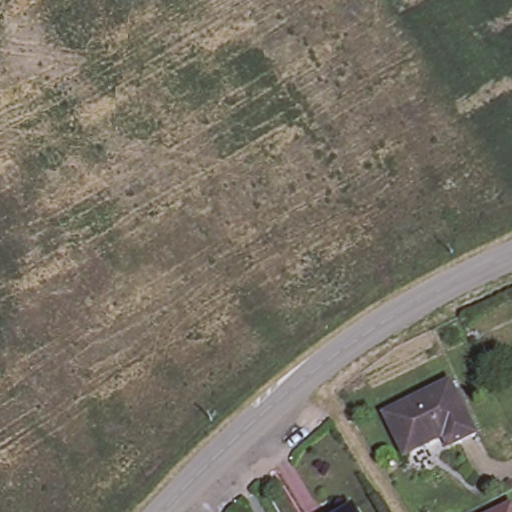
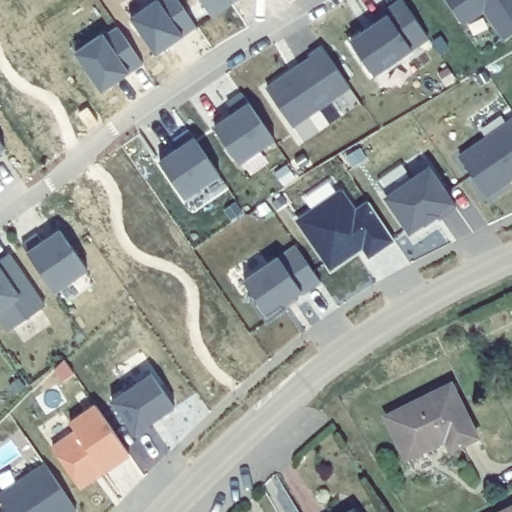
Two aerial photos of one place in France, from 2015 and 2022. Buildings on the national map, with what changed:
new [(158,0),(177,0),(196,28),(155,56),(130,19),(158,0)]
new [(216,18),(204,0),(243,0),(236,5),(216,18)]
new [(380,26),(377,21),(406,0),(433,38),(378,76),(355,42),(380,26)]
new [(512,38),(508,40),(488,11),(467,25),(450,0),(512,0),(512,38)]
new [(103,35),(105,37),(117,30),(142,65),(101,94),(73,55),(103,35)]
new [(315,59),(314,57),(327,47),(354,87),(296,127),(271,90),(315,59)]
new [(211,128),(248,101),(275,141),(239,165),(211,128)]
new [(512,118),(512,180),(485,198),(456,156),(512,118)]
new [(157,162),(195,136),(220,177),(183,200),(157,162)]
new [(5,152),(0,154),(0,145),(5,152)]
new [(434,169),(460,207),(443,219),(441,217),(430,224),(429,222),(415,233),(391,199),(434,169)]
new [(293,220),(341,187),(356,210),(369,201),(393,241),(369,258),(363,249),(330,270),(293,220)]
new [(27,253),(61,230),(86,271),(54,292),(27,253)]
new [(290,310),(271,322),(258,305),(262,303),(247,282),(300,247),(325,283),(308,296),(306,293),(300,298),(301,302),(290,310)]
new [(13,256),(49,307),(13,332),(0,313),(0,265),(13,256)]
new [(156,375),(179,408),(139,437),(116,403),(156,375)]
unchanged [(475,436),(447,450),(443,442),(406,458),(385,416),(450,385),(475,436)]
new [(100,479),(85,490),(57,450),(80,433),(75,426),(100,407),(133,456),(107,473),(100,480),(100,479)]
new [(50,467),(81,511),(80,512),(11,512),(2,500),(50,467)]
unchanged [(357,512),(343,512),(353,505),(357,512)]

